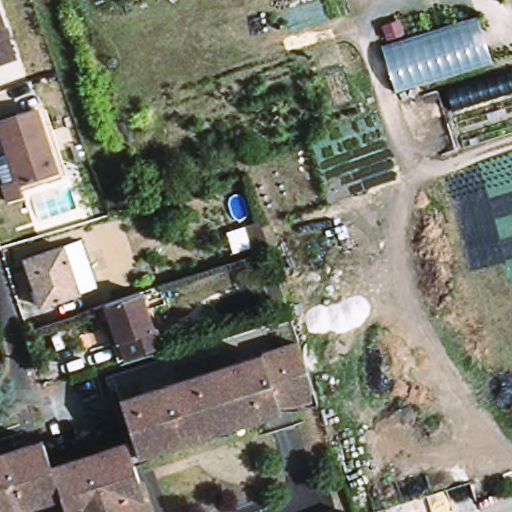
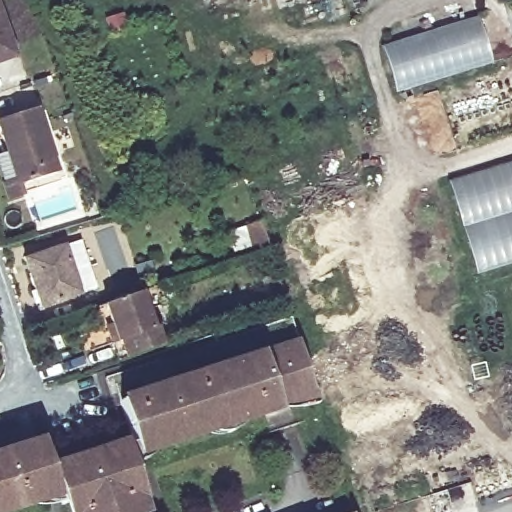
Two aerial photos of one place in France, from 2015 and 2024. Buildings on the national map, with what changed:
unchanged [(496,0),(503,0),(497,2),(496,0)]
unchanged [(16,56),(0,62),(0,8),(16,56)]
unchanged [(495,61),(397,92),(382,44),(481,13),(495,61)]
unchanged [(57,176),(18,188),(21,198),(6,202),(0,183),(0,156),(7,154),(0,131),(0,122),(37,110),(57,176)]
new [(447,181),(512,161),(512,262),(476,273),(447,181)]
unchanged [(272,249),(258,253),(250,225),(263,221),(272,249)]
unchanged [(98,293),(40,311),(25,263),(83,246),(98,293)]
unchanged [(285,294),(270,298),(265,281),(279,277),(285,294)]
unchanged [(115,330),(109,309),(145,299),(162,293),(169,314),(151,319),(156,337),(159,336),(164,353),(120,367),(115,349),(110,333),(115,330)]
unchanged [(317,397),(291,406),(296,426),(271,433),(265,413),(135,455),(115,389),(297,333),(317,397)]
unchanged [(37,443),(46,471),(124,446),(136,481),(130,482),(139,512),(67,512),(65,502),(58,504),(54,493),(0,510),(0,455),(37,443)]

